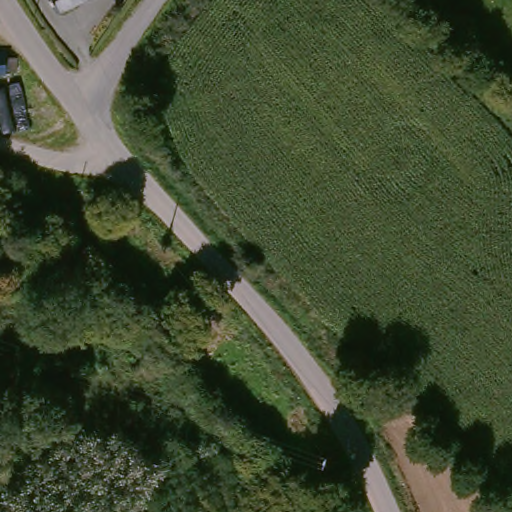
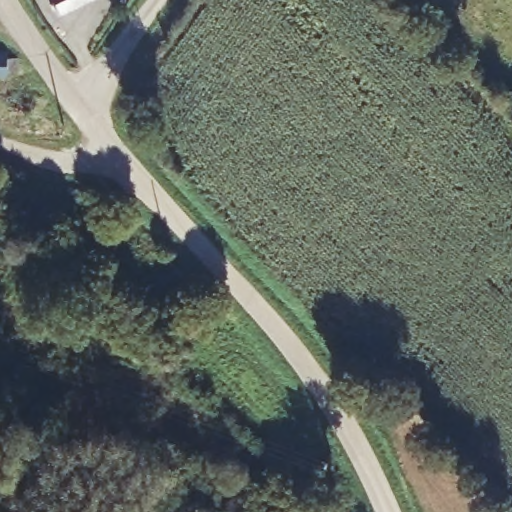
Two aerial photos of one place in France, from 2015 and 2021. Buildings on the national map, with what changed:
unchanged [(59,18),(49,0),(95,0),(59,18)]
unchanged [(4,66),(8,66),(10,66),(9,76),(3,75),(2,80),(0,80),(0,62),(4,62),(4,66)]

